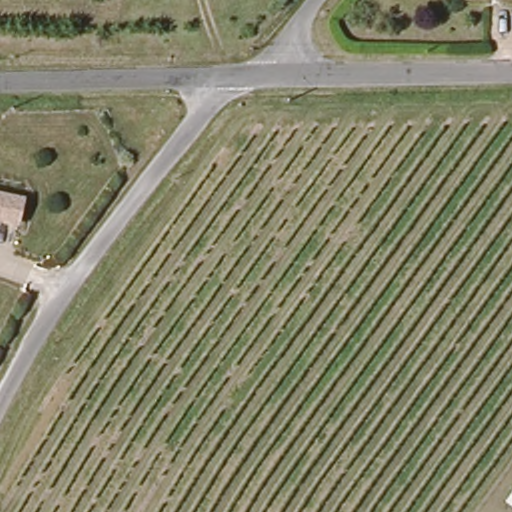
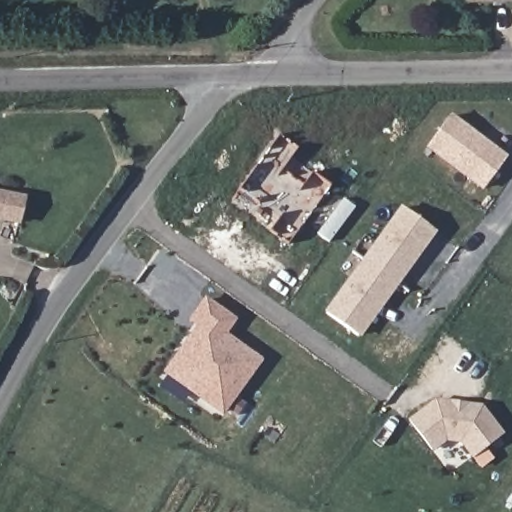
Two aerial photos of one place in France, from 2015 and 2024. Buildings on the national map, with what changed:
new [(482,191),(425,148),(450,114),(507,157),(482,191)]
unchanged [(17,220),(0,217),(0,190),(22,194),(17,220)]
new [(360,336),(323,310),(400,205),(436,231),(360,336)]
new [(200,325),(191,319),(205,299),(231,317),(221,332),(259,359),(222,410),(166,370),(200,325)]
new [(445,440),(434,451),(408,418),(434,398),(481,404),(502,431),(470,456),(459,442),(445,440)]

